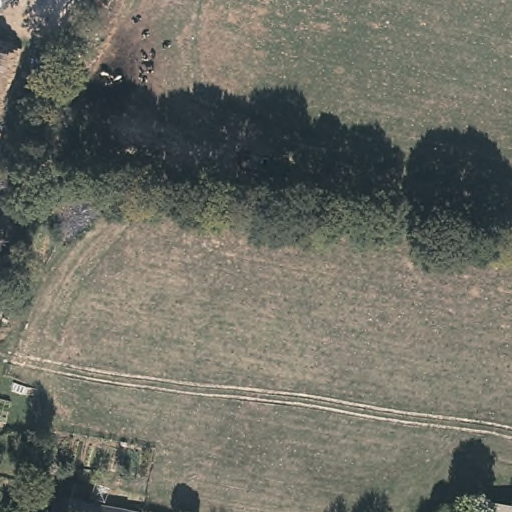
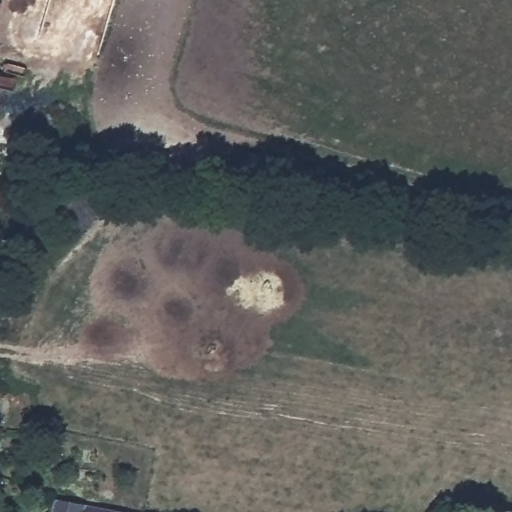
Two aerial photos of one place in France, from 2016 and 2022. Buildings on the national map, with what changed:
unchanged [(52,501),(100,510),(110,512),(50,512),(52,501)]
unchanged [(512,512),(486,512),(488,501),(512,507),(512,512)]

